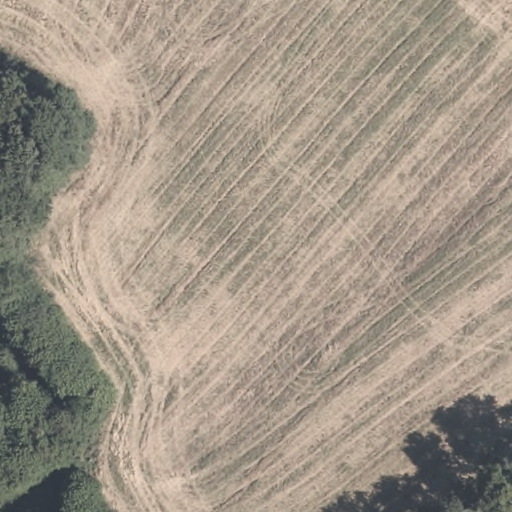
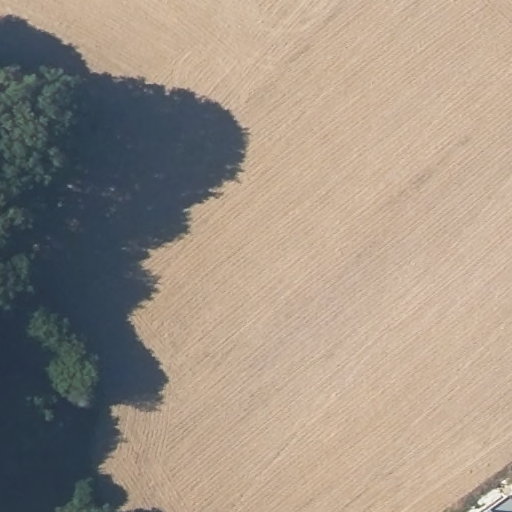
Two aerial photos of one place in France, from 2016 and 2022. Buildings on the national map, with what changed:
new [(493,512),(512,498),(512,512),(493,512)]

